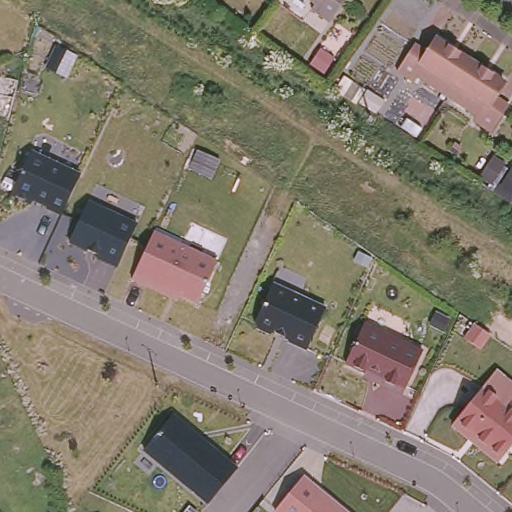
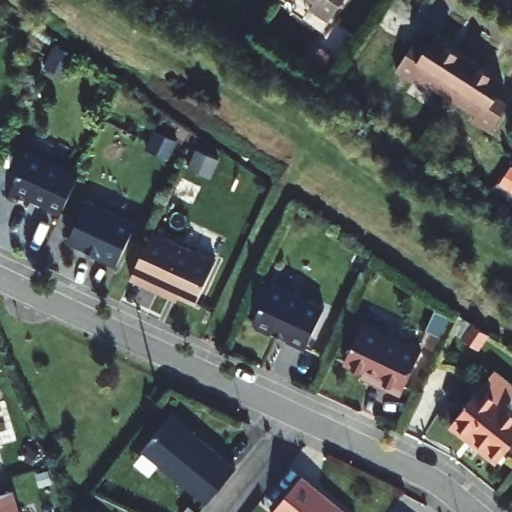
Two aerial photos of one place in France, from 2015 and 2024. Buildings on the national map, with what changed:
unchanged [(314,0),(341,0),(331,14),(313,1),(314,0)]
unchanged [(448,90),(438,84),(417,70),(414,74),(397,64),(415,38),(429,46),(437,34),(470,55),(448,90)]
unchanged [(474,114),(477,110),(448,90),(470,55),(504,78),(495,90),(509,99),(491,126),(474,114)]
unchanged [(59,214),(4,194),(24,148),(77,169),(59,214)]
unchanged [(112,264),(60,243),(80,195),(131,217),(112,264)]
unchanged [(131,278),(152,230),(217,260),(197,304),(131,278)]
unchanged [(252,324),(270,284),(325,307),(305,349),(252,324)]
unchanged [(344,366),(367,323),(424,351),(402,396),(344,366)]
unchanged [(450,424),(479,387),(492,369),(512,384),(512,400),(507,406),(512,410),(512,443),(497,462),(450,424)]
unchanged [(143,449),(172,413),(235,468),(207,506),(143,449)]
unchanged [(303,475),(346,512),(274,512),(303,475)]
new [(19,512),(0,512),(0,496),(13,492),(19,512)]

